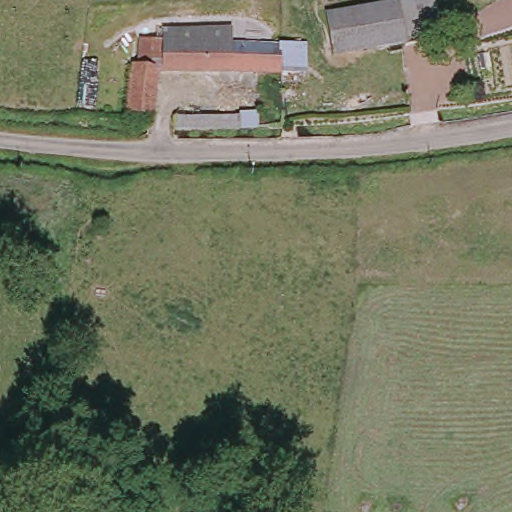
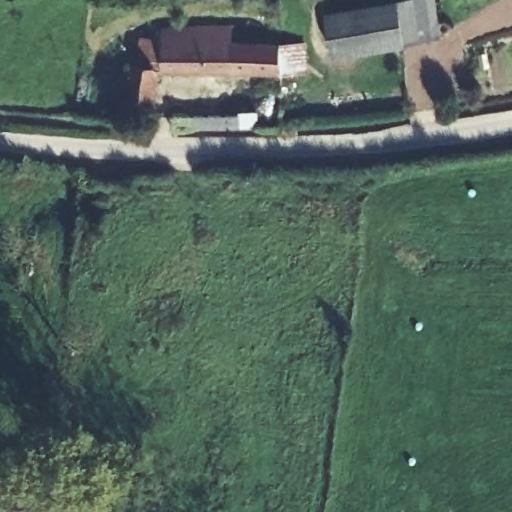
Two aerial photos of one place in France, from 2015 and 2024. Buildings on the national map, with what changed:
unchanged [(350,55),(346,13),(417,5),(421,46),(350,55)]
unchanged [(153,120),(128,115),(136,67),(147,69),(151,42),(163,43),(163,32),(281,30),(306,30),(308,57),(282,60),(161,75),(153,120)]
unchanged [(173,130),(175,122),(244,120),(243,115),(261,115),(262,128),(173,130)]

